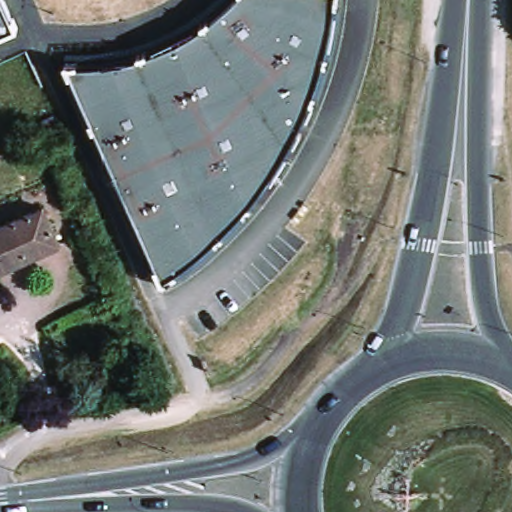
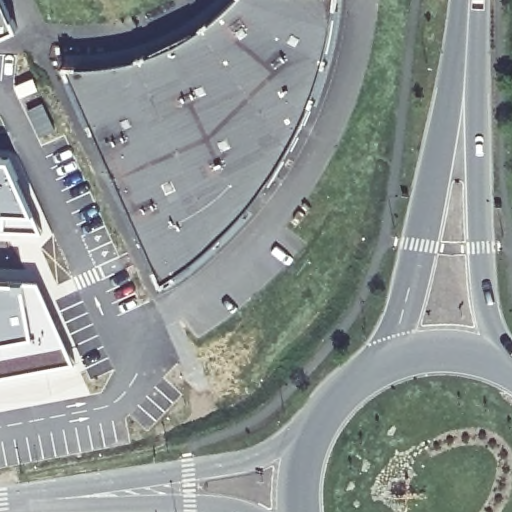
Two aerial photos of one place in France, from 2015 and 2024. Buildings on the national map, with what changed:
unchanged [(5,0),(17,27),(0,35),(0,0),(5,0)]
unchanged [(118,63),(157,52),(194,34),(220,12),(232,0),(338,0),(336,27),(326,69),(306,118),(283,159),(254,200),(203,252),(161,281),(66,62),(90,66),(118,63)]
new [(43,101),(55,128),(39,136),(26,109),(43,101)]
new [(11,154),(33,202),(42,226),(0,227),(0,154),(11,154)]
demolished [(19,267),(0,275),(0,233),(2,232),(47,211),(64,246),(19,267)]
new [(18,276),(41,276),(77,357),(81,370),(64,374),(63,368),(40,367),(0,372),(0,275),(18,276)]

